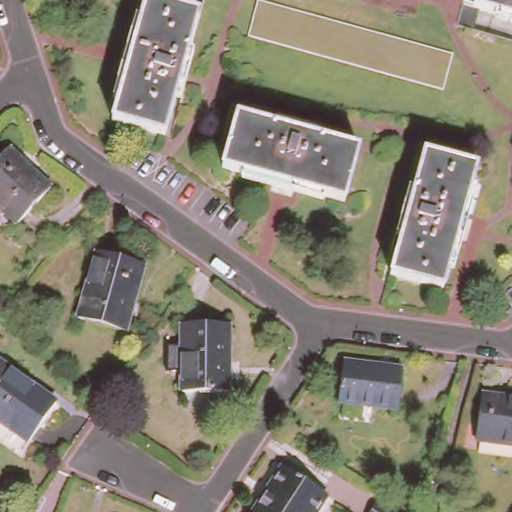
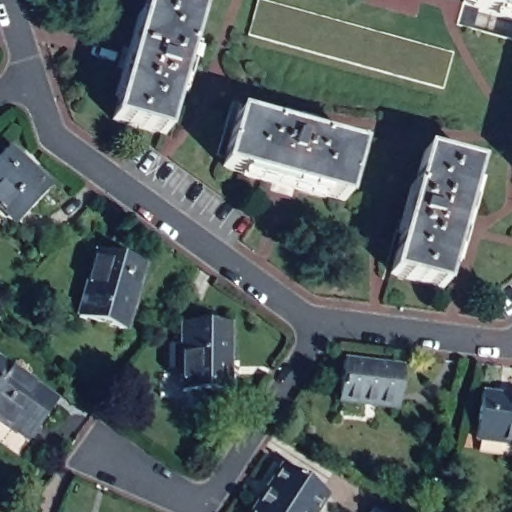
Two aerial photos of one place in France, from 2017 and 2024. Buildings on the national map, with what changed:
unchanged [(166,135),(112,121),(145,0),(155,0),(198,12),(166,135)]
unchanged [(464,0),(512,0),(512,13),(464,0)]
unchanged [(222,164),(237,111),(359,143),(344,197),(222,164)]
unchanged [(19,222),(0,205),(0,158),(10,148),(52,187),(19,222)]
unchanged [(442,285),(390,271),(424,149),(476,164),(442,285)]
unchanged [(125,323),(79,310),(97,243),(142,255),(125,323)]
unchanged [(227,383),(182,383),(182,315),(227,315),(227,383)]
unchanged [(338,392),(343,353),(400,360),(395,399),(338,392)]
unchanged [(29,442),(0,422),(0,364),(56,403),(29,442)]
unchanged [(474,436),(480,391),(512,394),(512,440),(474,436)]
unchanged [(250,512),(282,462),(325,491),(312,512),(250,512)]
unchanged [(398,512),(371,512),(380,499),(398,512)]

